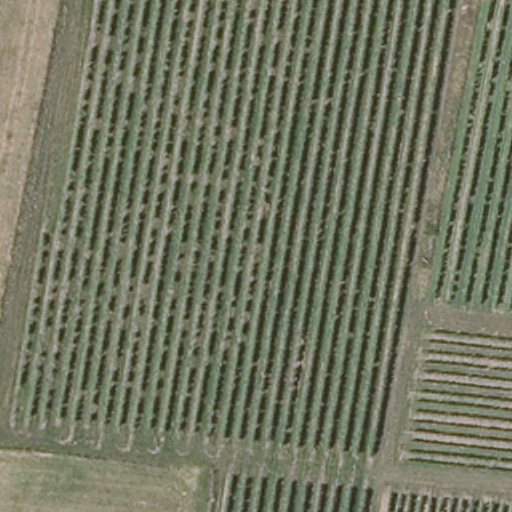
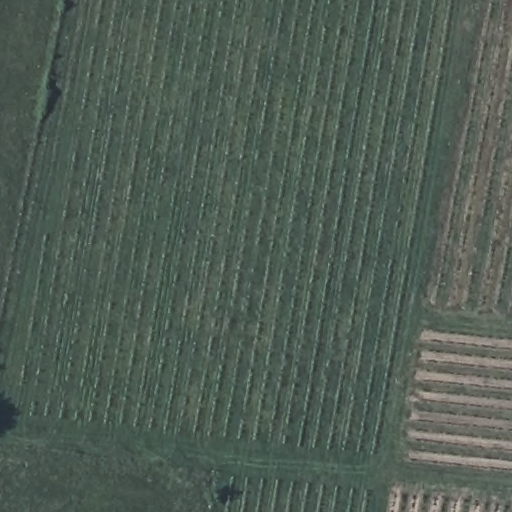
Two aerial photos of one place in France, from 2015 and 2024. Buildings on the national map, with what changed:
[]

